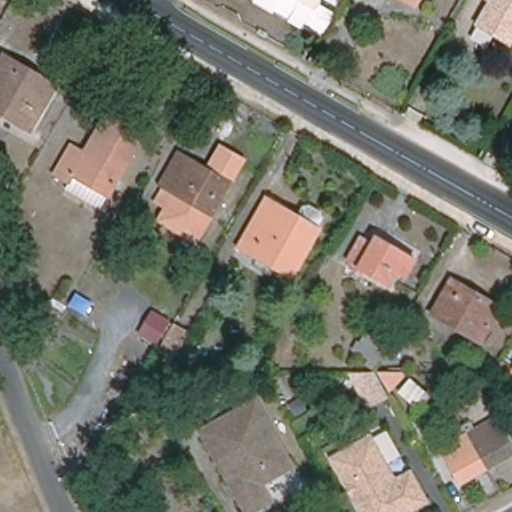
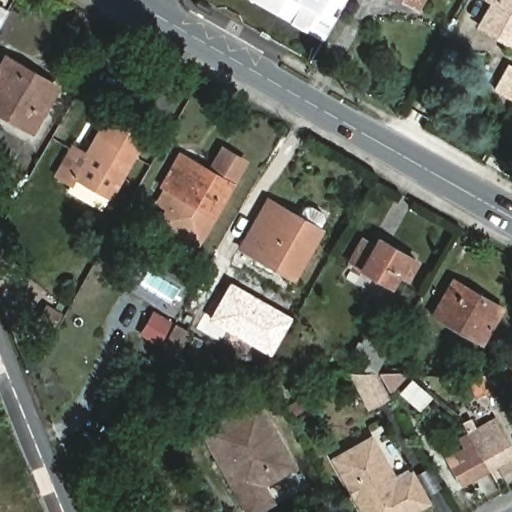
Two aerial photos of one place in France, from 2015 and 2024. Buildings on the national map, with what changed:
unchanged [(320,35),(258,0),(259,0),(340,0),(320,35)]
unchanged [(420,1),(420,0),(421,0),(420,1)]
unchanged [(512,44),(506,55),(472,36),(485,12),(473,4),(475,0),(512,0),(512,44)]
unchanged [(0,113),(0,69),(6,59),(27,72),(57,90),(51,100),(32,132),(0,113)]
unchanged [(103,204),(67,183),(70,178),(57,171),(72,145),(85,152),(92,139),(97,131),(119,143),(134,152),(103,204)]
unchanged [(218,144),(247,160),(231,186),(204,170),(218,144)]
unchanged [(231,186),(214,217),(161,187),(180,156),(231,186)]
unchanged [(196,245),(156,222),(163,207),(153,202),(161,187),(214,217),(196,245)]
unchanged [(299,220),(307,208),(313,209),(321,214),(325,219),(317,231),(320,232),(293,279),(241,249),(268,202),(299,220)]
unchanged [(407,274),(398,270),(391,282),(350,258),(363,236),(372,242),(376,235),(388,242),(416,258),(407,274)]
new [(229,281),(292,316),(270,356),(207,320),(229,281)]
unchanged [(453,282),(502,309),(483,343),(434,316),(453,282)]
unchanged [(356,349),(364,336),(350,328),(356,318),(378,331),(365,354),(356,349)]
unchanged [(192,329),(178,353),(163,344),(176,320),(192,329)]
unchanged [(347,359),(347,358),(366,359),(378,382),(364,389),(347,359)]
unchanged [(380,376),(370,359),(376,359),(396,359),(380,376)]
unchanged [(512,375),(511,375),(512,374),(512,375)]
unchanged [(409,376),(430,395),(418,408),(398,392),(409,376)]
unchanged [(252,399),(286,462),(255,479),(264,499),(243,509),(197,428),(252,399)]
unchanged [(512,457),(494,467),(462,484),(449,460),(465,451),(459,441),(468,436),(464,428),(471,424),(474,432),(496,420),(512,449),(512,457)]
unchanged [(350,490),(345,480),(342,482),(328,455),(365,434),(389,478),(404,469),(420,498),(394,512),(360,512),(348,491),(350,490)]

